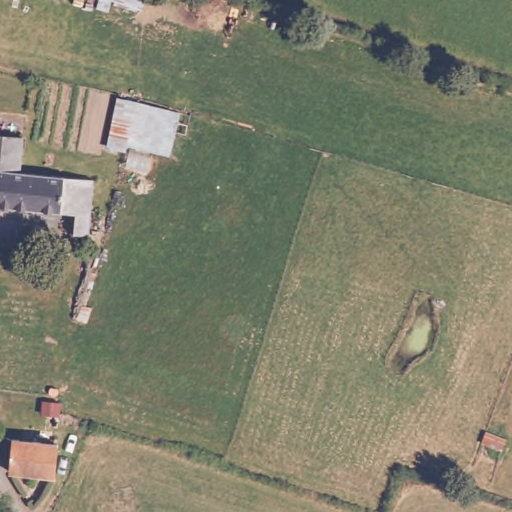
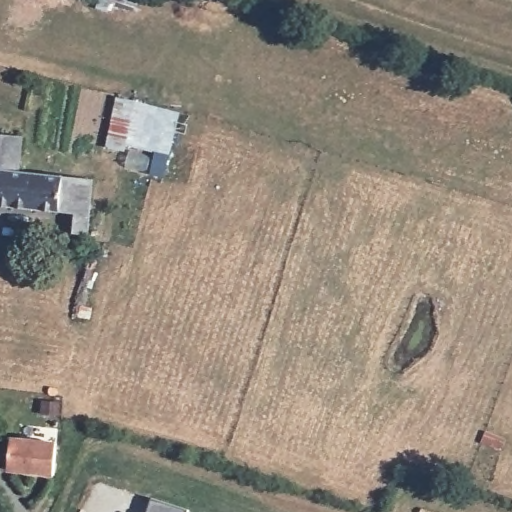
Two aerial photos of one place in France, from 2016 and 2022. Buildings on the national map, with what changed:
unchanged [(180,112),(177,120),(187,123),(185,133),(175,131),(169,155),(127,146),(125,152),(105,147),(117,95),(180,112)]
unchanged [(16,168),(90,171),(87,228),(72,227),(72,206),(0,203),(0,132),(17,133),(16,168)]
unchanged [(10,438),(56,439),(56,470),(10,470),(10,438)]
new [(186,510),(185,512),(148,512),(152,499),(186,510)]

